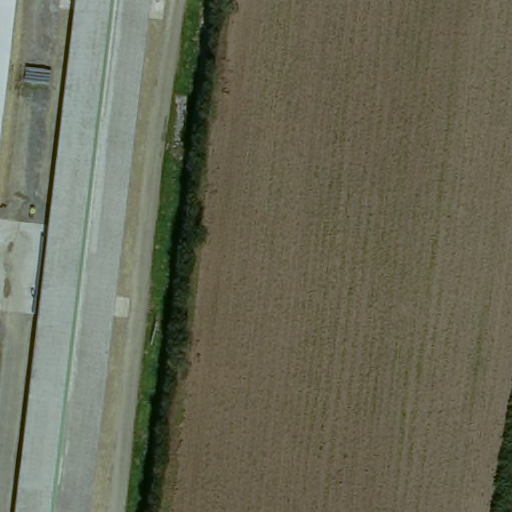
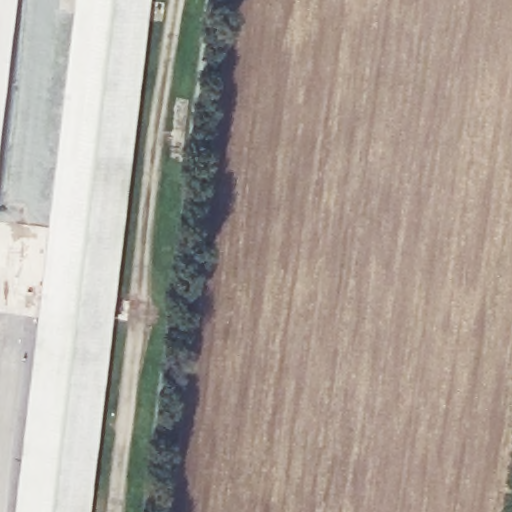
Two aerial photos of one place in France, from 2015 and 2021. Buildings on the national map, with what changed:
unchanged [(0,166),(0,0),(20,0),(0,166)]
unchanged [(12,512),(75,0),(146,0),(83,512),(12,512)]

